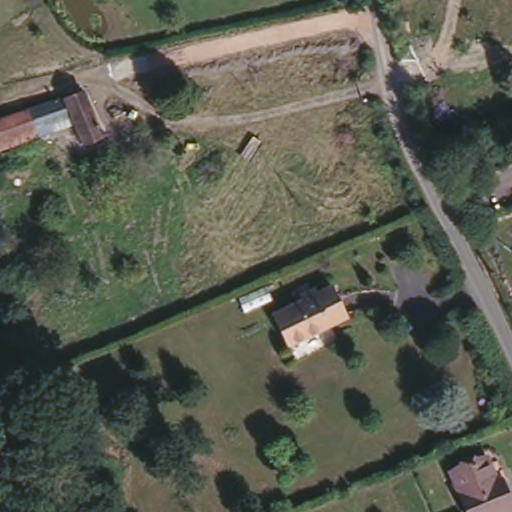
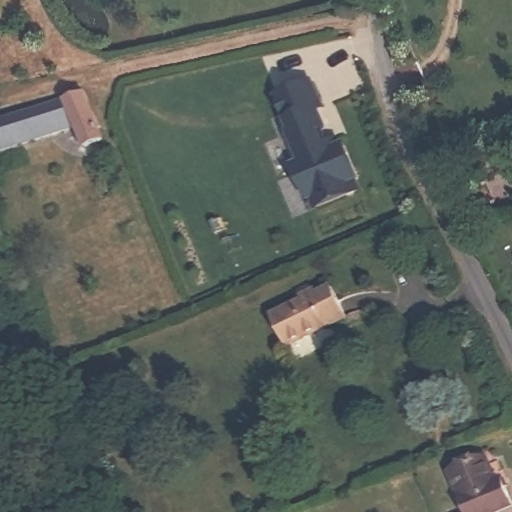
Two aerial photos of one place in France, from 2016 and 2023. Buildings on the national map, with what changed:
new [(312,195),(309,197),(296,165),(300,164),(287,131),(292,130),(278,94),(312,81),(322,107),(318,108),(330,140),(340,136),(356,177),(352,178),(356,190),(316,206),(312,195)]
unchanged [(87,143),(77,123),(2,151),(0,145),(0,118),(63,94),(86,85),(101,121),(106,134),(87,143)]
unchanged [(335,286),(348,318),(288,344),(275,313),(335,286)]
unchanged [(445,460),(483,442),(494,467),(500,466),(511,491),(468,510),(445,460)]
unchanged [(461,512),(440,512),(457,504),(461,512)]

